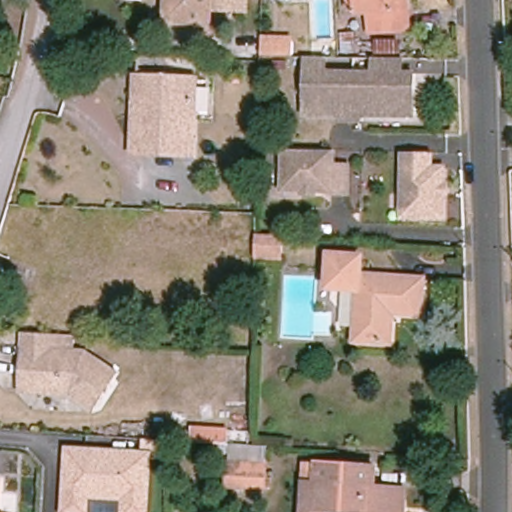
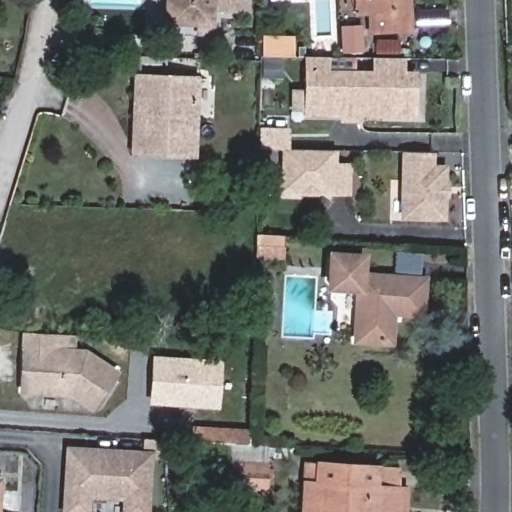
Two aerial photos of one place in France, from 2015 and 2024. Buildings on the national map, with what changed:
unchanged [(210,25),(165,22),(166,0),(211,0),(211,12),(210,25)]
unchanged [(211,12),(211,0),(249,0),(249,14),(211,12)]
unchanged [(367,32),(366,12),(353,13),(352,0),(404,0),(406,29),(367,32)]
unchanged [(350,13),(352,53),(337,54),(334,14),(350,13)]
unchanged [(265,39),(296,39),(296,56),(270,55),(264,55),(265,39)]
unchanged [(395,41),(395,51),(373,51),(373,40),(395,41)]
unchanged [(342,70),(357,70),(357,113),(357,119),(342,119),(342,113),(302,113),(302,70),(317,70),(318,56),(343,56),(342,70)]
unchanged [(412,71),(412,114),(357,113),(357,70),(372,70),(373,56),(399,57),(398,71),(412,71)]
unchanged [(199,78),(195,156),(144,154),(147,96),(137,95),(137,69),(156,69),(156,76),(199,78)]
unchanged [(330,154),(329,169),(344,170),(343,197),(327,197),(327,194),(279,193),(281,153),(330,154)]
unchanged [(427,172),(440,173),(438,222),(399,221),(401,156),(421,157),(427,157),(427,172)]
unchanged [(283,235),(283,258),(257,257),(258,234),(283,235)]
unchanged [(426,279),(423,315),(393,313),(392,343),(357,340),(360,290),(330,288),(332,254),(365,257),(363,274),(426,279)]
unchanged [(76,330),(75,347),(87,348),(118,368),(95,404),(72,389),(66,389),(59,382),(43,380),(36,387),(22,386),(26,327),(54,329),(76,330)]
new [(151,359),(216,364),(213,406),(148,402),(151,359)]
unchanged [(151,512),(121,512),(122,499),(91,498),(90,512),(62,512),(66,444),(154,450),(151,512)]
unchanged [(230,486),(231,463),(268,464),(267,488),(230,486)]
unchanged [(387,489),(401,489),(400,512),(362,512),(362,511),(321,509),(320,512),(300,512),(302,483),(313,484),(315,464),(372,468),(372,488),(387,489)]
unchanged [(0,480),(2,480),(0,503),(0,480)]

